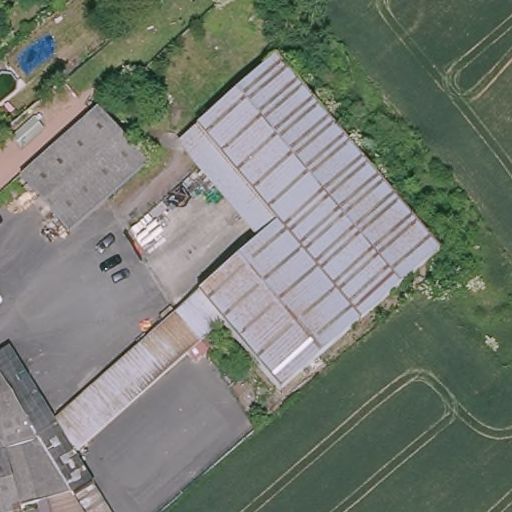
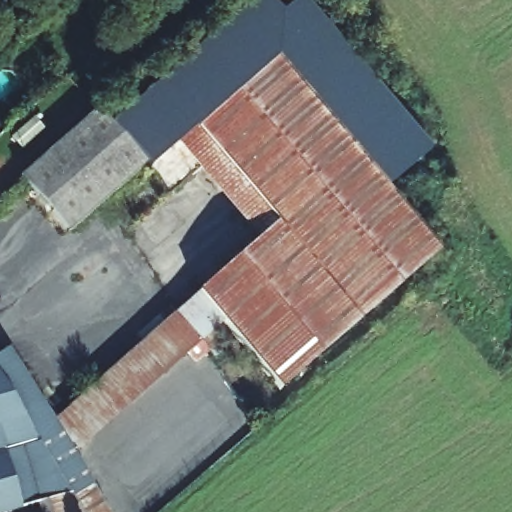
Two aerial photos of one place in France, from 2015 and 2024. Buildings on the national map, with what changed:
new [(171,148),(151,166),(148,161),(70,230),(21,177),(98,108),(111,121),(251,0),(269,0),(281,13),(298,0),(299,0),(430,150),(384,187),(275,61),(171,148)]
unchanged [(78,454),(104,512),(45,512),(43,505),(20,512),(0,512),(0,354),(10,350),(56,417),(247,236),(171,148),(275,61),(439,251),(279,388),(226,322),(78,454)]
demolished [(149,167),(69,233),(22,177),(101,110),(149,167)]

